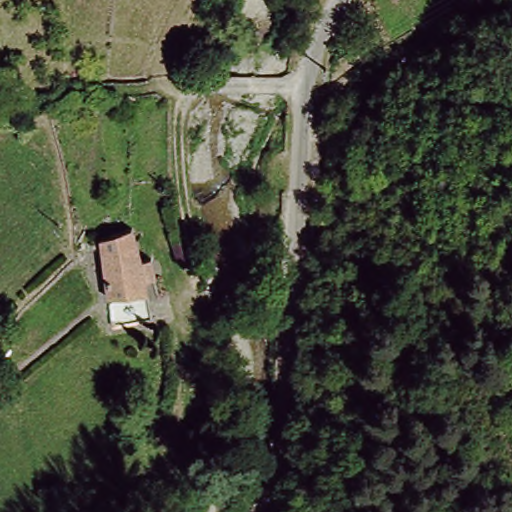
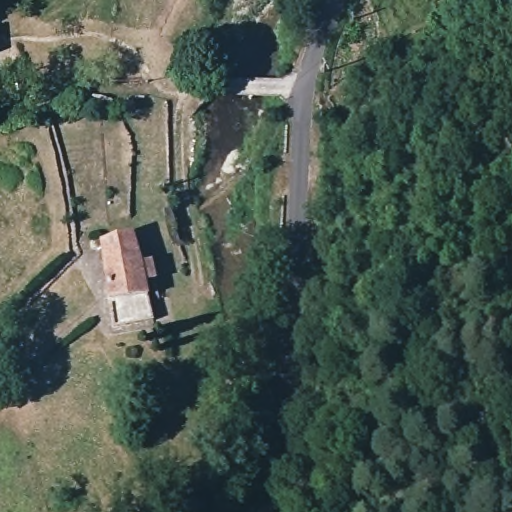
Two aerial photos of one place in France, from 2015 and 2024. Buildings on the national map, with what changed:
unchanged [(135,232),(141,258),(160,258),(163,277),(150,278),(153,310),(115,317),(106,240),(135,232)]

